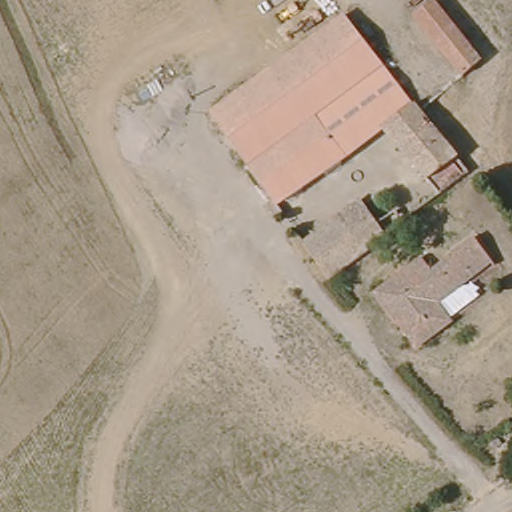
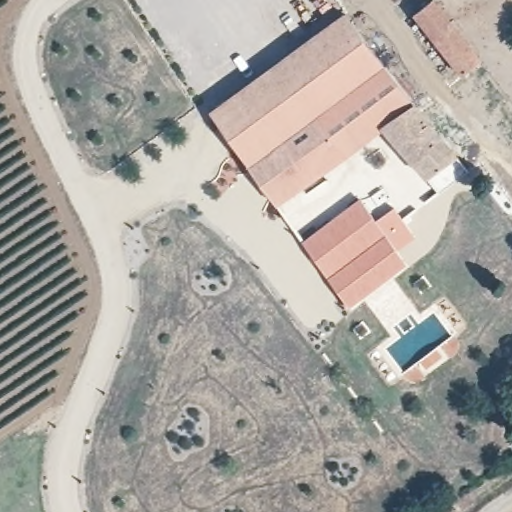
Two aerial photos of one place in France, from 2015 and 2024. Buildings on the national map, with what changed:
unchanged [(412,14),(428,0),(435,0),(483,54),(464,73),(412,14)]
unchanged [(219,116),(211,103),(346,5),(419,103),(430,96),(436,104),(425,111),(462,160),(434,182),(384,119),(275,196),(219,116)]
demolished [(427,92),(422,94),(418,94),(416,92),(412,86),(410,83),(411,79),(412,75),(417,71),(421,69),(426,70),(430,72),(433,76),(435,81),(433,86),(430,90),(427,92)]
new [(360,200),(375,219),(395,209),(415,238),(396,250),(408,266),(350,310),(302,243),(360,200)]
demolished [(336,279),(310,244),(368,202),(385,225),(406,212),(411,220),(393,237),(348,270),(336,279)]
demolished [(421,349),(395,314),(399,310),(387,292),(428,263),(437,274),(481,243),(497,267),(442,306),(455,325),(421,349)]

